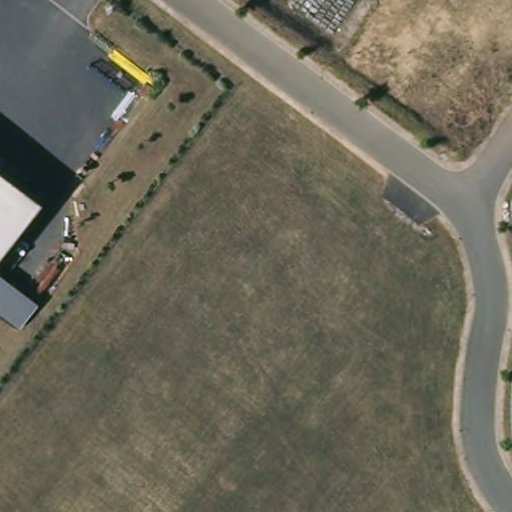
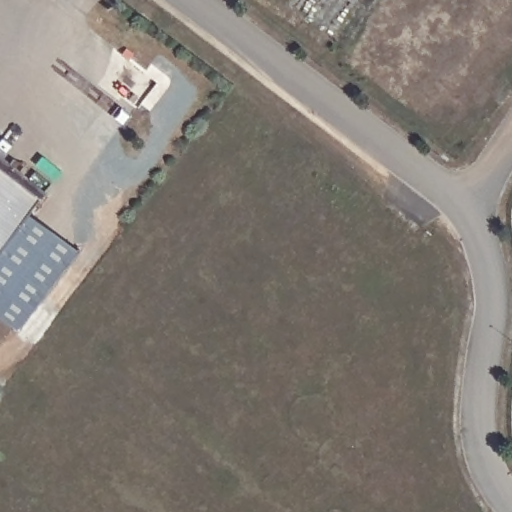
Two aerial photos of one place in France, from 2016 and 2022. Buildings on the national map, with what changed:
unchanged [(0,253),(0,162),(44,195),(0,253)]
new [(20,328),(0,314),(0,253),(31,212),(80,250),(20,328)]

